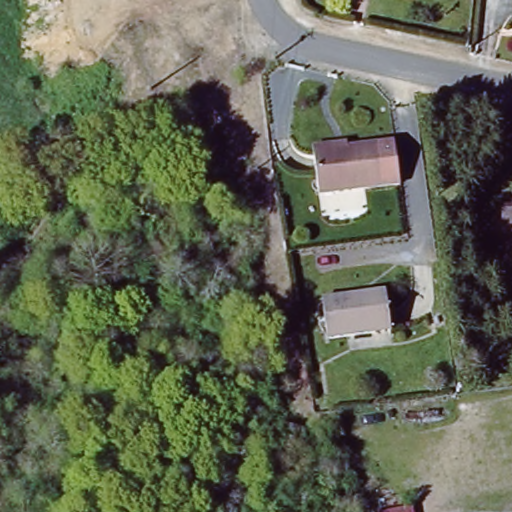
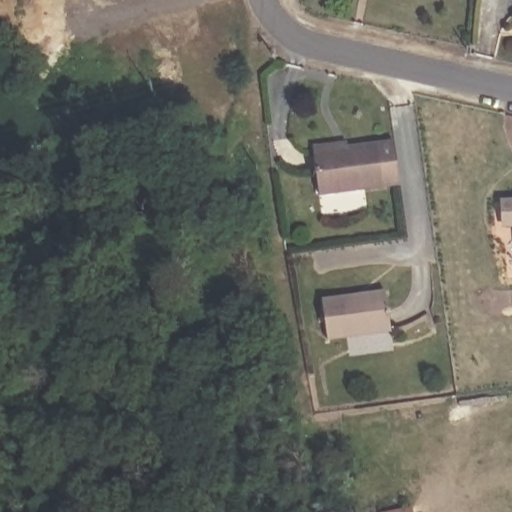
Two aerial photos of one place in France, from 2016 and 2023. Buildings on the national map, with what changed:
unchanged [(402,183),(321,192),(316,151),(316,146),(350,142),(351,148),(397,142),(402,183)]
unchanged [(512,192),(512,217),(509,217),(507,193),(512,192)]
unchanged [(326,301),(389,293),(394,331),(333,339),(326,301)]
unchanged [(413,505),(414,512),(386,512),(413,505)]

